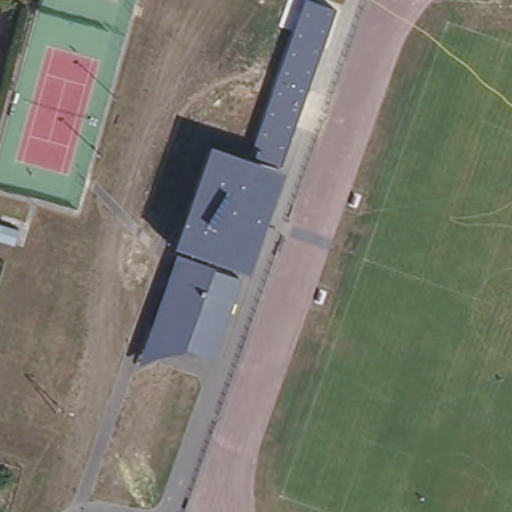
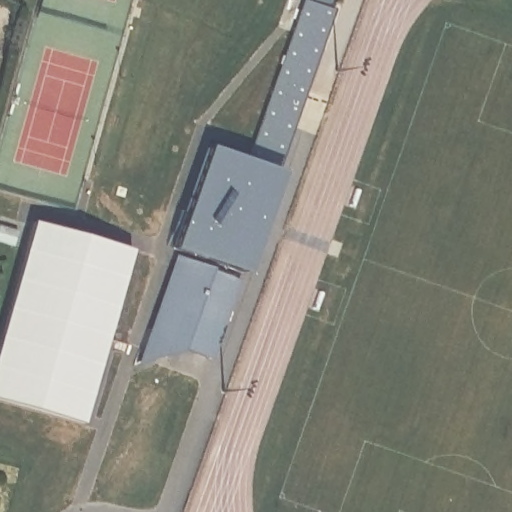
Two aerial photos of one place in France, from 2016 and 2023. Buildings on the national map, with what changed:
unchanged [(286,63),(282,62),(290,41),(293,42),(309,0),(340,0),(283,163),(253,152),(286,63)]
demolished [(262,70),(246,128),(222,122),(242,64),(262,70)]
unchanged [(246,272),(174,245),(207,145),(282,170),(246,272)]
demolished [(15,228),(0,224),(0,207),(19,213),(15,228)]
new [(82,424),(0,400),(0,332),(32,221),(132,250),(82,424)]
unchanged [(15,246),(0,242),(0,226),(19,231),(15,246)]
unchanged [(156,324),(178,262),(182,252),(195,257),(243,276),(217,355),(187,345),(187,346),(144,358),(156,324)]

